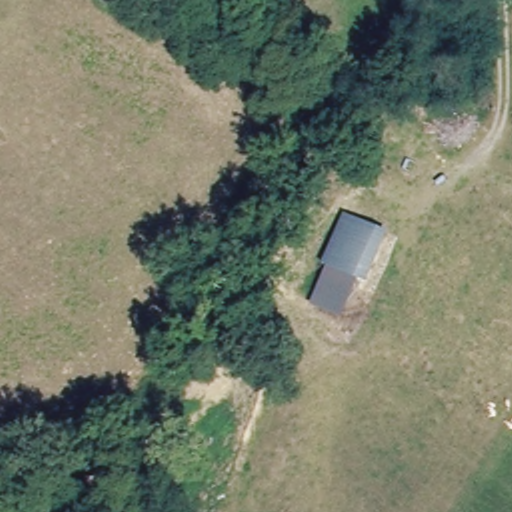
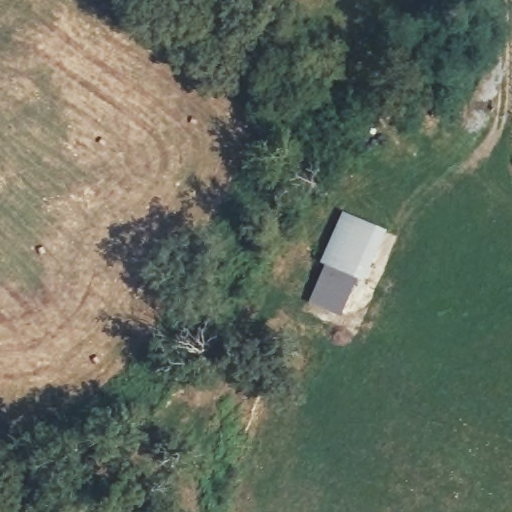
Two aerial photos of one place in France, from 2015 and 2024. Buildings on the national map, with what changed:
unchanged [(376,284),(321,271),(341,209),(385,227),(376,284)]

